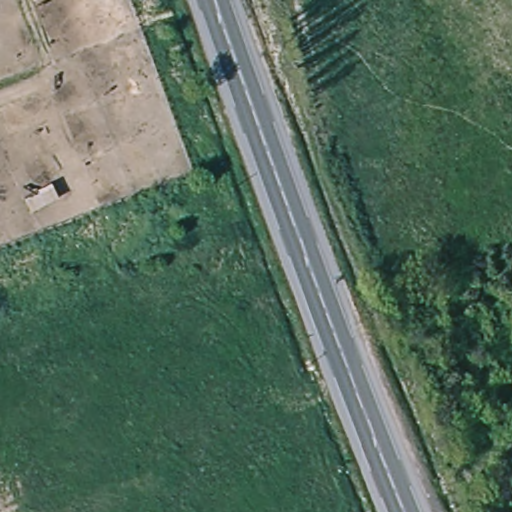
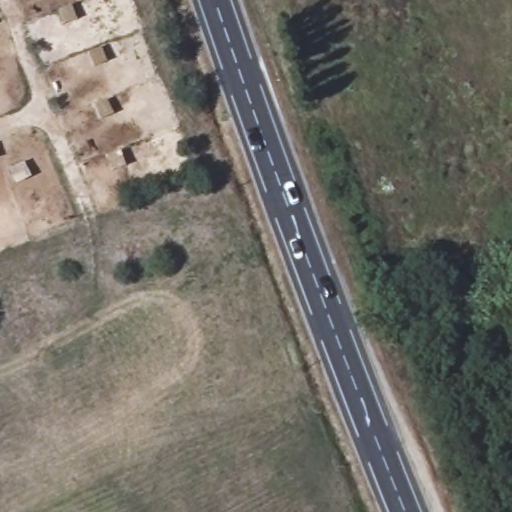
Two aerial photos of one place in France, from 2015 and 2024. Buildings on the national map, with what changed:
[]

